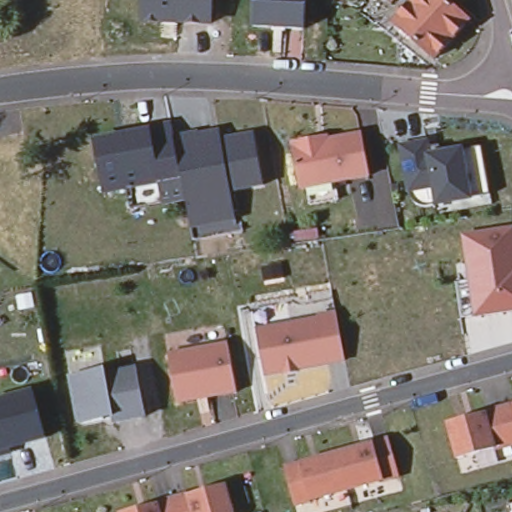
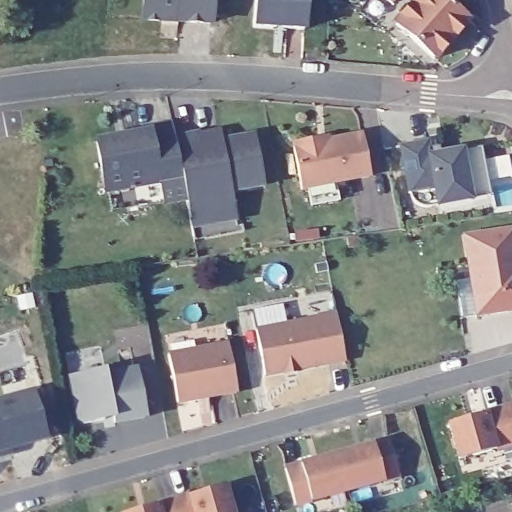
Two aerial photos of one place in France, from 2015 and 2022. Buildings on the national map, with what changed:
unchanged [(145,0),(214,0),(212,24),(178,22),(162,21),(144,20),(145,0)]
unchanged [(312,0),(310,35),(260,31),(262,0),(312,0)]
unchanged [(394,0),(392,3),(388,0),(394,0)]
unchanged [(442,0),(470,25),(438,61),(397,26),(421,0),(442,0)]
unchanged [(130,218),(123,212),(122,203),(122,201),(132,200),(130,187),(102,192),(92,142),(144,133),(143,130),(168,125),(170,138),(182,199),(142,207),(144,216),(130,218)]
unchanged [(307,201),(303,184),(297,185),(288,139),(312,135),(323,133),(324,136),(357,130),(365,172),(330,179),(333,196),(307,201)]
unchanged [(189,240),(185,219),(182,201),(182,199),(170,138),(194,134),(195,136),(214,132),(216,141),(250,134),(259,187),(226,193),(230,211),(233,232),(189,240)]
unchanged [(425,203),(417,200),(410,189),(401,142),(427,137),(428,143),(440,141),(442,150),(482,143),(489,182),(490,192),(425,203)]
unchanged [(512,226),(512,307),(467,314),(461,278),(464,277),(462,264),(473,262),(470,233),(512,226)]
unchanged [(287,269),(290,283),(271,286),(268,272),(287,269)]
unchanged [(285,374),(285,372),(265,375),(257,330),(291,324),(318,319),(318,316),(337,313),(345,361),(298,369),(298,372),(285,374)]
unchanged [(237,392),(177,403),(168,355),(228,344),(237,392)]
unchanged [(110,423),(108,413),(98,415),(99,420),(80,424),(73,420),(65,377),(100,370),(102,375),(132,369),(141,417),(110,423)]
unchanged [(46,438),(8,448),(7,446),(0,448),(0,401),(33,392),(46,438)]
unchanged [(512,402),(512,442),(510,442),(500,406),(512,402)]
unchanged [(458,457),(448,420),(500,406),(510,442),(458,457)]
unchanged [(389,441),(399,478),(347,492),(337,456),(389,441)]
unchanged [(295,507),(285,470),(337,456),(347,492),(295,507)]
unchanged [(224,487),(231,512),(175,512),(172,501),(224,487)]
unchanged [(172,501),(175,512),(133,512),(172,501)]

